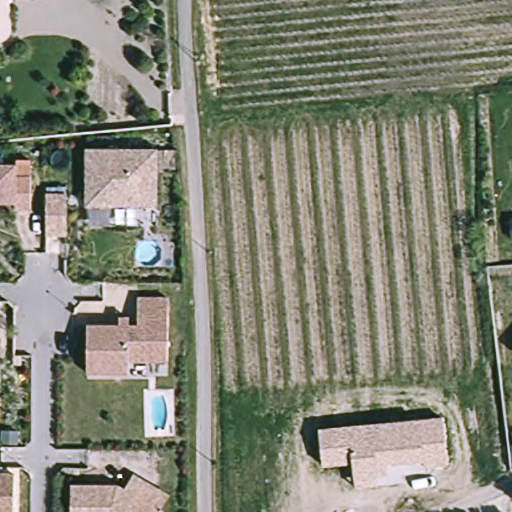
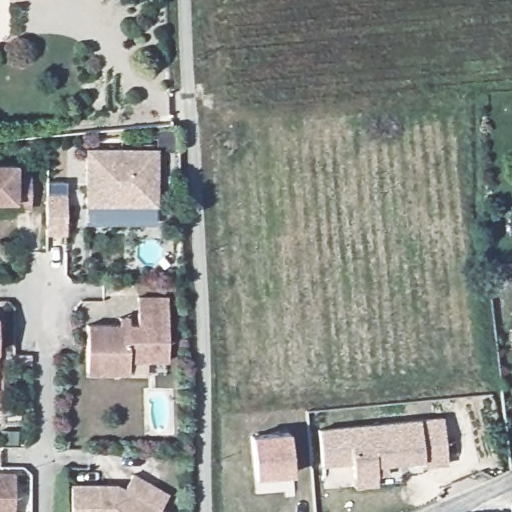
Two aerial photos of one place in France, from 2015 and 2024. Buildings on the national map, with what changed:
unchanged [(86,190),(87,145),(157,144),(156,200),(86,201),(86,190)]
unchanged [(16,176),(31,177),(30,208),(14,207),(14,201),(0,201),(0,165),(16,165),(16,176)]
unchanged [(71,190),(71,229),(51,229),(51,189),(71,190)]
unchanged [(112,373),(91,374),(90,326),(141,324),(141,296),(170,295),(171,358),(131,360),(132,372),(112,373)]
unchanged [(439,418),(447,466),(424,468),(424,460),(387,465),(388,475),(374,477),(374,486),(354,488),(354,463),(323,467),(320,430),(416,420),(439,418)]
new [(291,435),(296,475),(259,480),(253,440),(291,435)]
unchanged [(74,481),(119,481),(127,486),(136,470),(171,492),(163,506),(169,510),(168,512),(74,512),(74,481)]
unchanged [(12,512),(0,512),(0,472),(13,472),(12,512)]

